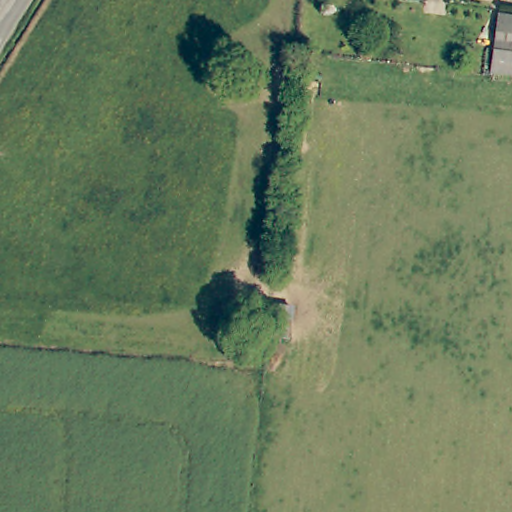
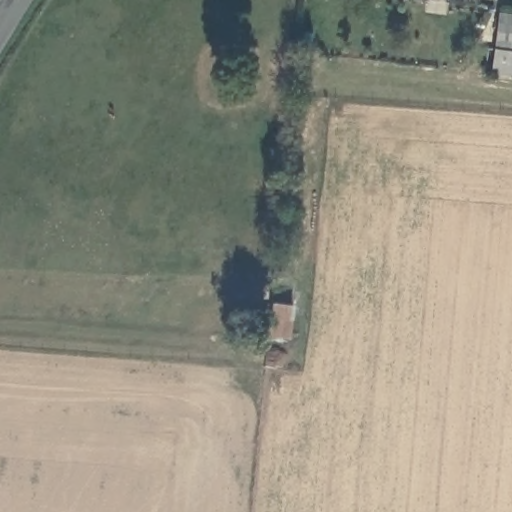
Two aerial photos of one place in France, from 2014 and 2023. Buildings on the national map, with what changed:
unchanged [(512,77),(489,74),(498,15),(512,17),(512,77)]

